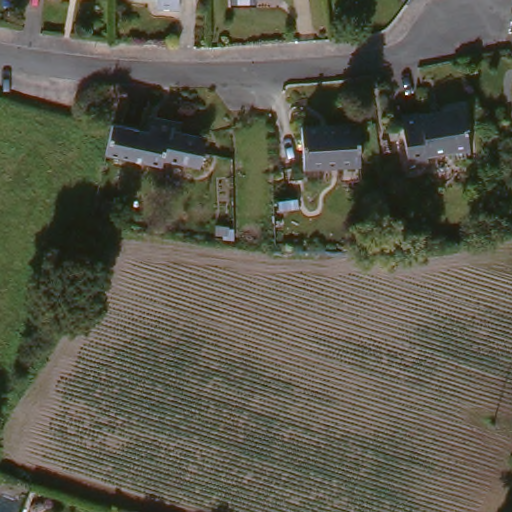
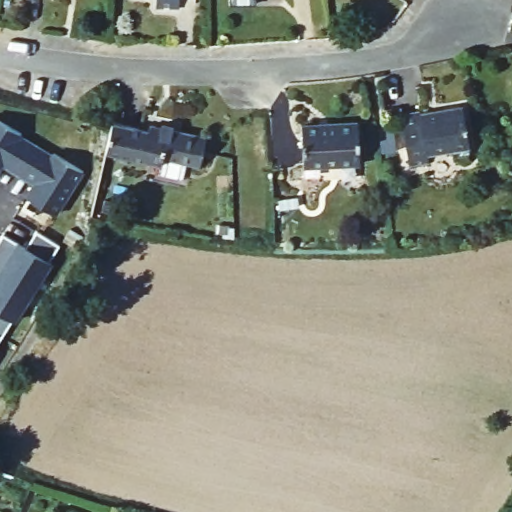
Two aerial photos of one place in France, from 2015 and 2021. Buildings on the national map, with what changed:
unchanged [(421,113),(419,107),(462,101),(469,145),(454,147),(454,139),(428,143),(429,152),(407,155),(402,116),(421,113)]
new [(54,152),(83,171),(55,217),(25,197),(32,186),(1,167),(0,168),(0,118),(54,152)]
unchanged [(361,121),(360,165),(304,164),(304,121),(361,121)]
unchanged [(150,129),(151,125),(162,127),(163,122),(174,125),(173,130),(208,137),(202,165),(164,157),(163,163),(114,153),(107,152),(112,127),(113,122),(150,129)]
new [(3,235),(18,242),(49,261),(17,324),(12,322),(0,341),(0,239),(3,235)]

